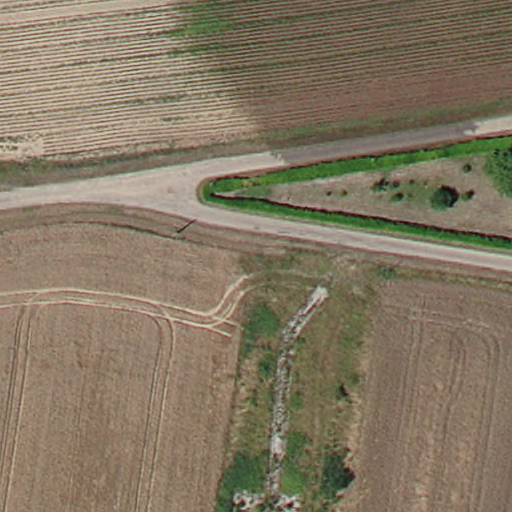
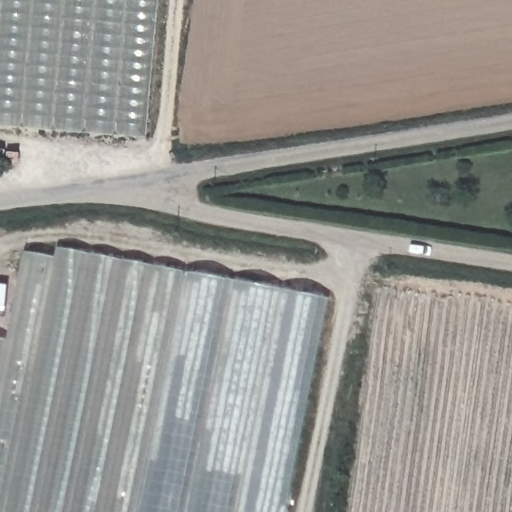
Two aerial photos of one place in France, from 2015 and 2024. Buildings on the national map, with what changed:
new [(165,0),(151,142),(0,137),(0,0),(165,0)]
new [(8,340),(25,252),(56,257),(58,247),(329,298),(287,512),(0,512),(0,338),(8,340)]

